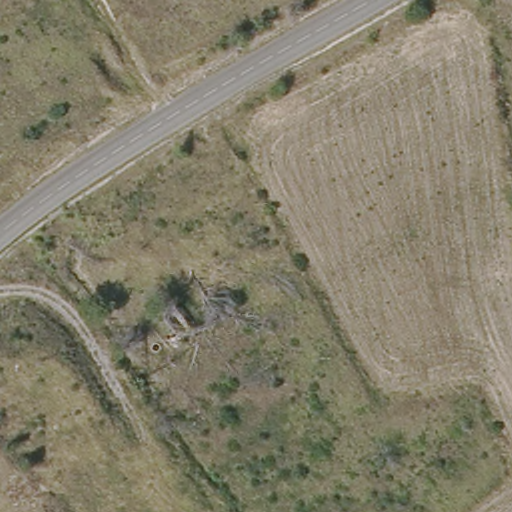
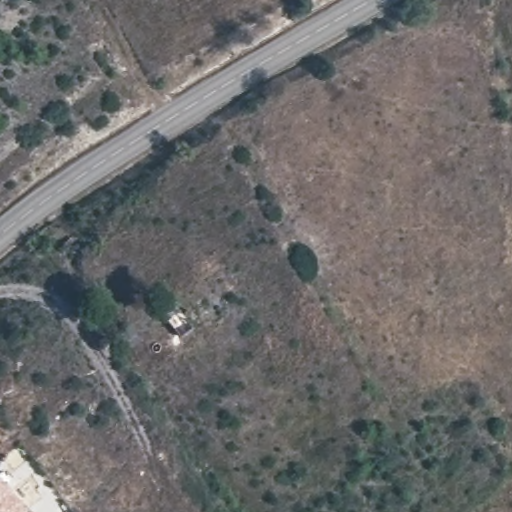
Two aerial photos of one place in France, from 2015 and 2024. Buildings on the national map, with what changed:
new [(29,512),(0,512),(0,477),(24,505),(29,512)]

